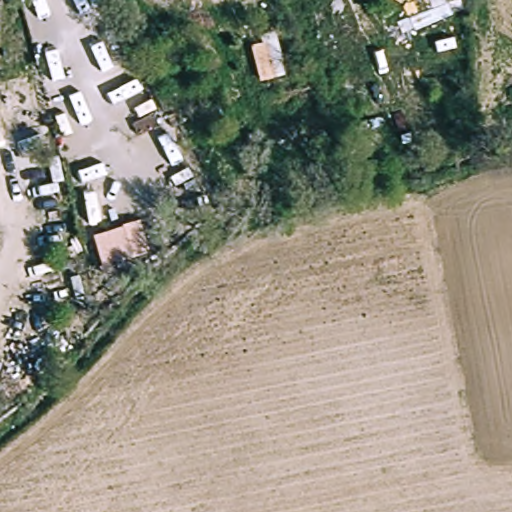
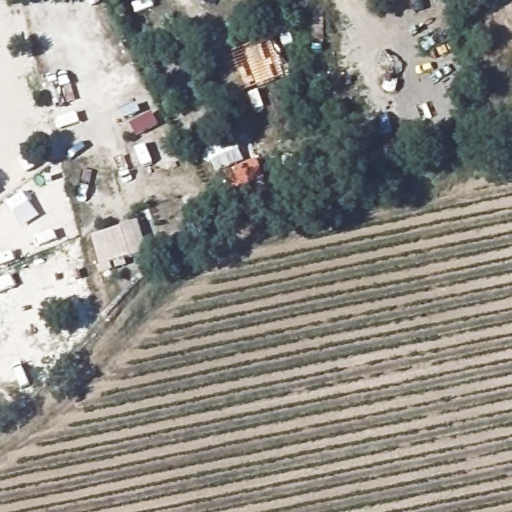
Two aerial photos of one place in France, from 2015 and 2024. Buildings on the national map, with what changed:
unchanged [(88,235),(129,226),(134,257),(94,266),(88,235)]

